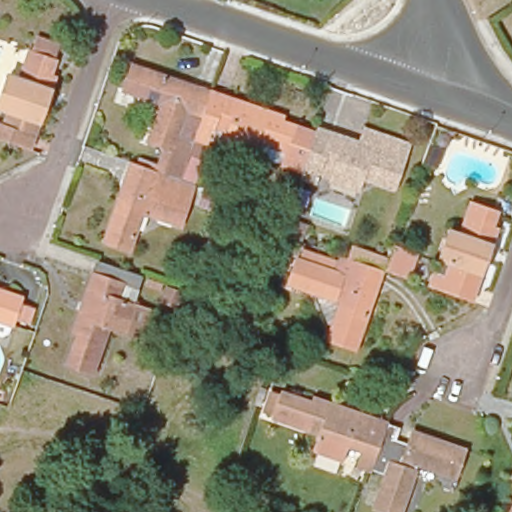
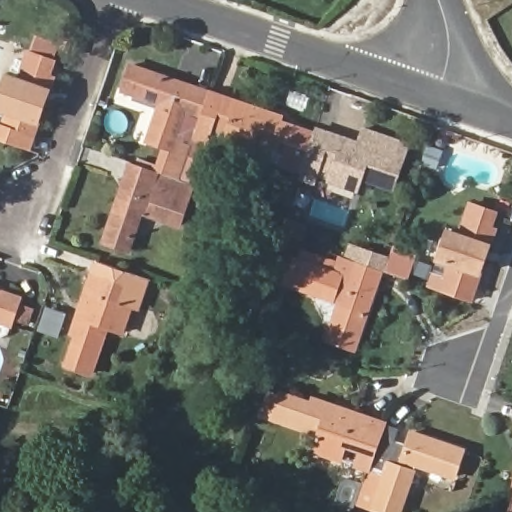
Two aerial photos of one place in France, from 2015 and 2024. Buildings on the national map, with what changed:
unchanged [(0,77),(13,81),(22,56),(48,65),(43,80),(46,82),(25,143),(0,135),(0,119),(5,104),(0,103),(0,79),(0,77)]
unchanged [(169,150),(145,142),(159,103),(120,89),(127,66),(182,84),(195,88),(207,92),(197,123),(180,179),(161,173),(169,150)]
unchanged [(282,166),(286,153),(260,144),(255,157),(232,148),(236,136),(197,123),(207,92),(282,118),(280,123),(312,133),(303,158),(300,169),(298,172),(282,166)]
unchanged [(361,177),(356,189),(328,179),(332,167),(318,162),(314,174),(300,169),(303,158),(312,133),(314,128),(356,143),(361,129),(407,145),(401,164),(392,188),(361,177)]
unchanged [(441,152),(436,168),(420,163),(425,146),(441,152)]
unchanged [(155,171),(149,186),(188,200),(180,224),(141,211),(129,249),(104,240),(121,187),(135,192),(139,179),(125,174),(130,162),(155,171)]
unchanged [(428,286),(449,222),(462,226),(471,199),(496,207),(490,227),(493,228),(470,300),(428,286)]
unchanged [(285,217),(305,225),(300,242),(280,233),(285,217)]
unchanged [(370,288),(365,301),(346,353),(321,344),(334,305),(283,287),(291,264),(342,282),(348,265),(375,274),(370,288)]
unchanged [(132,277),(128,291),(118,288),(113,303),(130,309),(120,336),(104,330),(88,376),(65,368),(75,340),(72,338),(97,265),(132,277)]
unchanged [(403,275),(401,283),(380,276),(382,268),(403,275)]
unchanged [(21,303),(14,328),(10,339),(6,340),(0,338),(0,296),(21,303)]
unchanged [(370,454),(341,445),(335,461),(308,452),(313,436),(267,420),(275,397),(305,407),(306,403),(379,428),(370,454)]
unchanged [(388,445),(400,449),(405,437),(458,455),(450,480),(411,468),(396,512),(371,512),(367,511),(385,459),(370,454),(379,428),(392,432),(388,445)]

